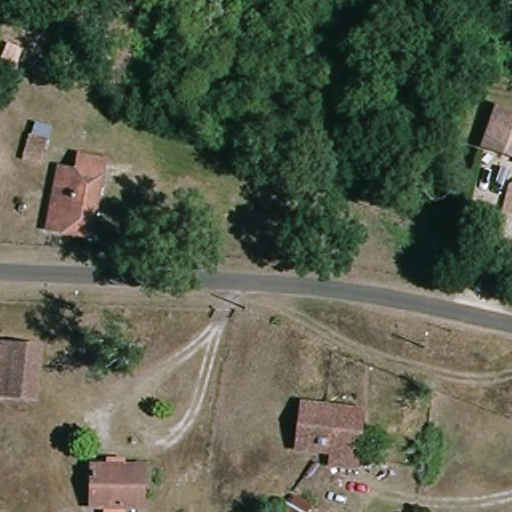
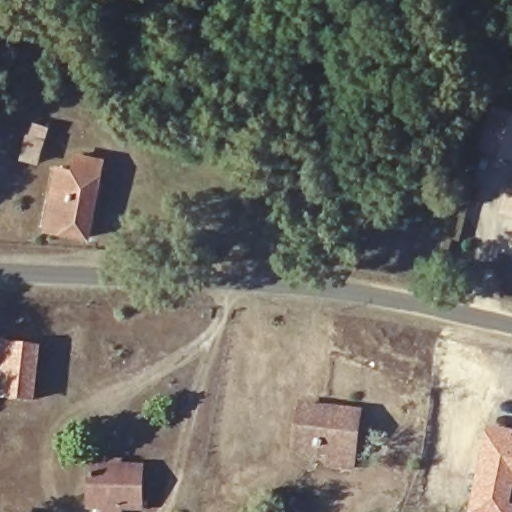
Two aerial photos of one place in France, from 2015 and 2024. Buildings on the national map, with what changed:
unchanged [(114,10),(108,28),(82,19),(86,1),(114,10)]
unchanged [(495,111),(512,117),(512,155),(485,144),(495,111)]
unchanged [(72,172),(74,156),(106,162),(102,178),(92,238),(50,233),(62,170),(72,172)]
unchanged [(512,193),(512,211),(507,209),(512,193)]
unchanged [(35,403),(7,400),(0,400),(0,346),(14,347),(40,349),(35,403)]
unchanged [(298,451),(302,404),(327,407),(320,452),(298,451)]
unchanged [(327,407),(360,411),(356,457),(320,452),(327,407)]
new [(512,428),(512,434),(512,437),(512,496),(511,503),(512,503),(512,512),(465,512),(483,422),(512,428)]
unchanged [(92,504),(94,464),(142,465),(140,505),(92,504)]
demolished [(282,479),(280,492),(262,489),(264,476),(282,479)]

